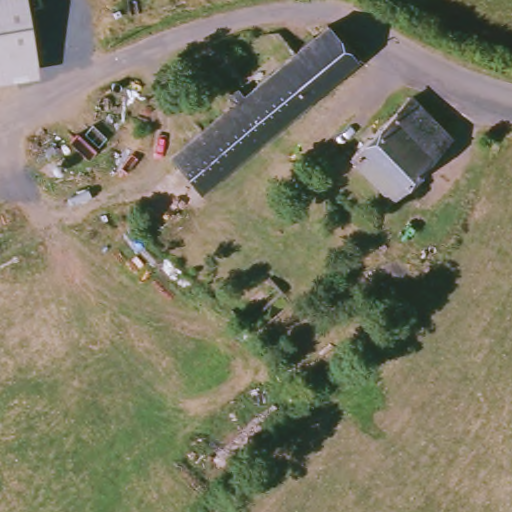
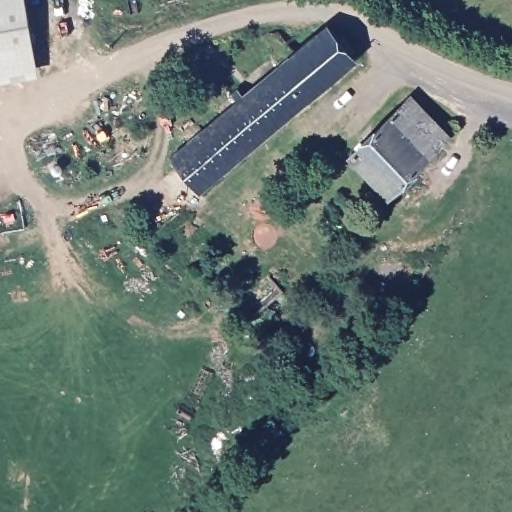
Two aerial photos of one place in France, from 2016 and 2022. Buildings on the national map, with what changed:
unchanged [(42,76),(0,84),(0,0),(28,0),(42,76)]
unchanged [(171,157),(237,100),(232,94),(238,89),(244,95),(279,65),(271,56),(287,42),(295,52),(327,24),(357,60),(199,192),(171,157)]
unchanged [(449,135),(388,195),(350,156),(411,97),(449,135)]

